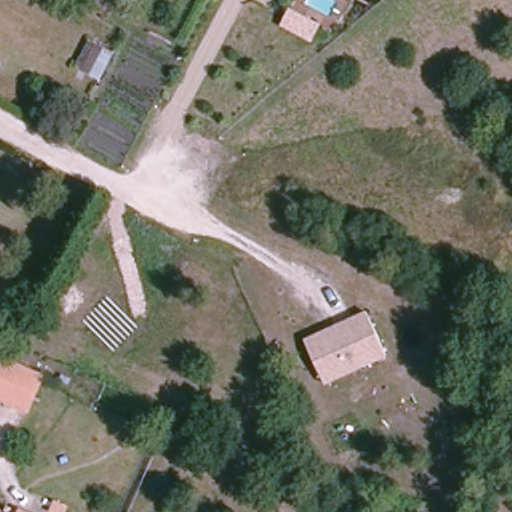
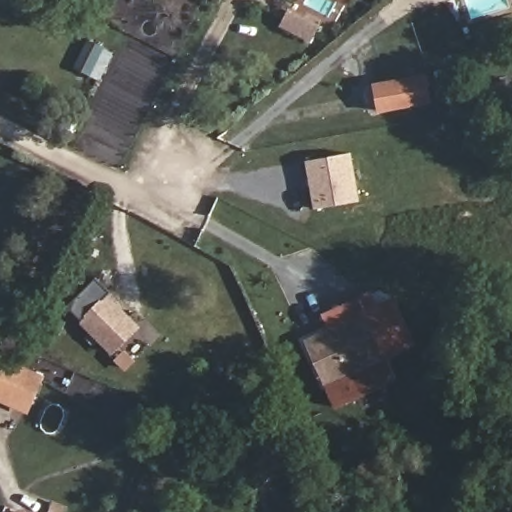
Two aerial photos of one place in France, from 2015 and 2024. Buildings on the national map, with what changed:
unchanged [(77,67),(90,42),(104,49),(91,74),(77,67)]
new [(425,73),(431,104),(376,113),(372,83),(425,73)]
new [(306,162),(352,152),(361,201),(313,209),(306,162)]
unchanged [(304,339),(366,312),(327,328),(321,313),(358,297),(359,298),(386,288),(412,344),(386,357),(325,384),(304,339)]
new [(139,328),(112,355),(78,322),(106,293),(139,328)]
new [(334,408),(325,384),(386,357),(395,377),(334,408)]
unchanged [(42,377),(30,409),(0,397),(0,368),(3,360),(42,377)]

